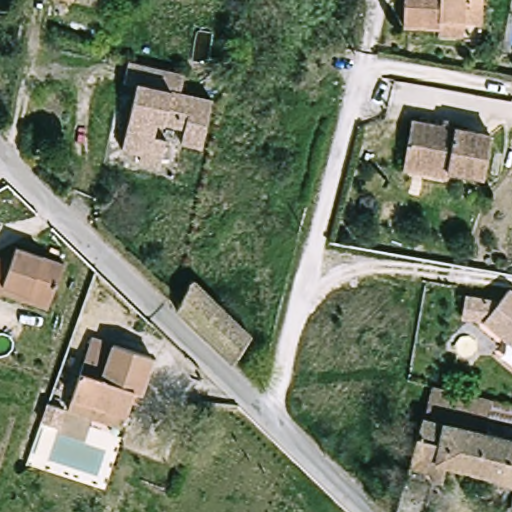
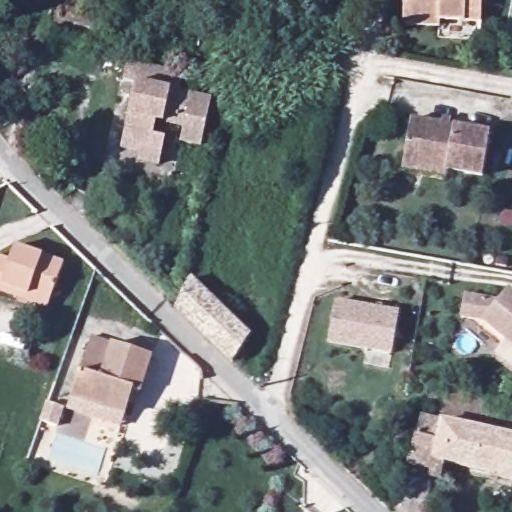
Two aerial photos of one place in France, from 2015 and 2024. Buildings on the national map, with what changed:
unchanged [(72,2),(64,0),(72,0),(72,2)]
unchanged [(97,6),(72,2),(72,0),(98,0),(97,6)]
unchanged [(481,21),(442,18),(441,25),(404,22),(405,0),(482,0),(481,21)]
unchanged [(138,80),(126,77),(131,56),(187,70),(183,89),(212,97),(202,143),(181,138),(184,123),(159,117),(155,132),(166,135),(160,161),(140,156),(142,148),(124,144),(138,80)]
unchanged [(491,133),(483,176),(448,170),(449,165),(405,157),(412,119),(491,133)]
unchanged [(19,247),(66,262),(50,309),(0,292),(0,256),(15,261),(19,247)]
unchanged [(191,283),(221,310),(250,336),(234,362),(225,355),(176,309),(191,283)]
unchanged [(487,319),(466,315),(469,295),(502,301),(512,288),(512,339),(487,319)]
new [(392,354),(327,342),(336,299),(399,310),(392,354)]
unchanged [(68,410),(71,399),(80,373),(101,379),(112,345),(150,357),(138,394),(131,391),(123,415),(119,426),(68,410)]
unchanged [(512,404),(512,433),(427,415),(435,385),(512,404)]
unchanged [(473,471),(475,464),(441,458),(415,453),(427,415),(512,433),(512,476),(503,474),(502,477),(473,471)]

